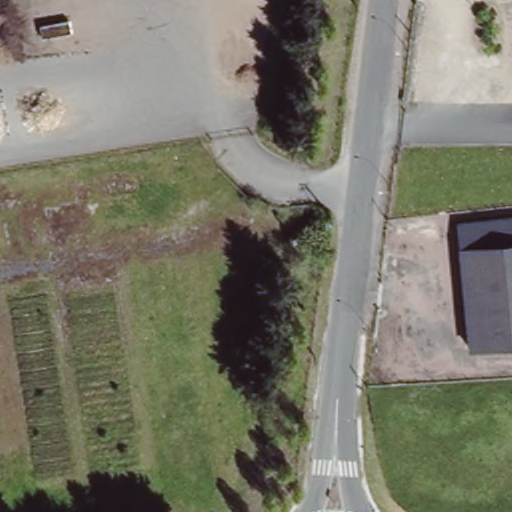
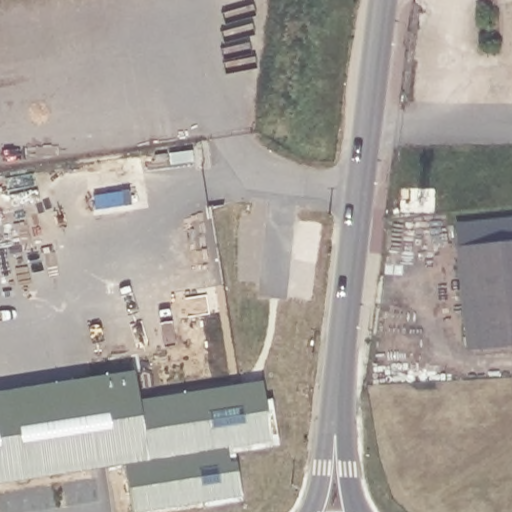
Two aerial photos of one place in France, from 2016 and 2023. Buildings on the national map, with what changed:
unchanged [(457,225),(512,219),(512,343),(469,347),(457,225)]
unchanged [(287,265),(290,246),(303,247),(300,267),(287,265)]
new [(127,461),(25,478),(0,482),(0,390),(9,389),(136,369),(139,400),(189,391),(189,393),(265,381),(274,440),(231,447),(239,496),(133,511),(127,461)]

